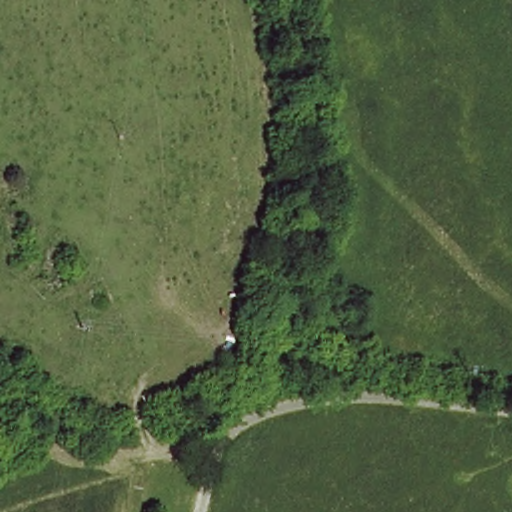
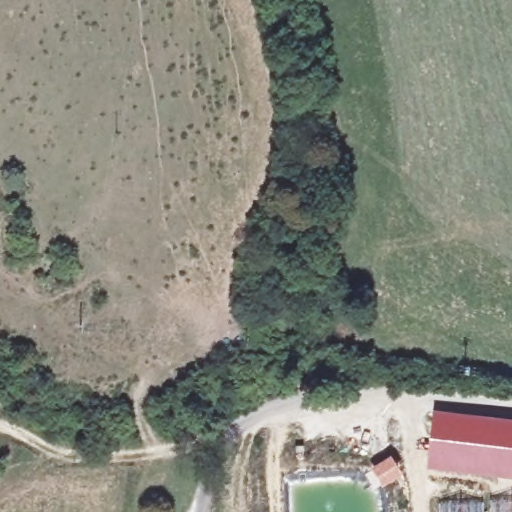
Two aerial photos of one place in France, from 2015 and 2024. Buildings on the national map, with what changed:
new [(434,407),(512,416),(512,476),(427,467),(434,407)]
new [(389,455),(403,476),(382,488),(369,468),(389,455)]

